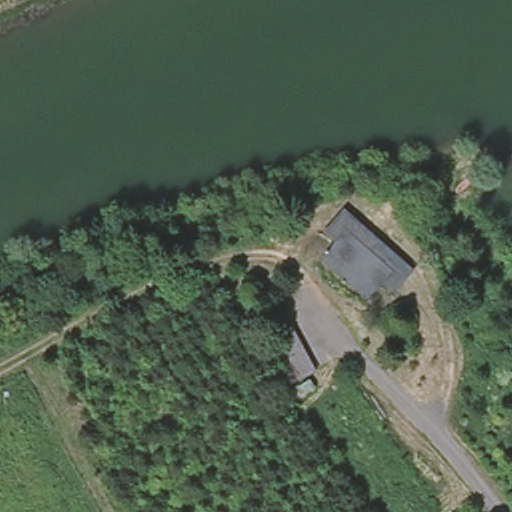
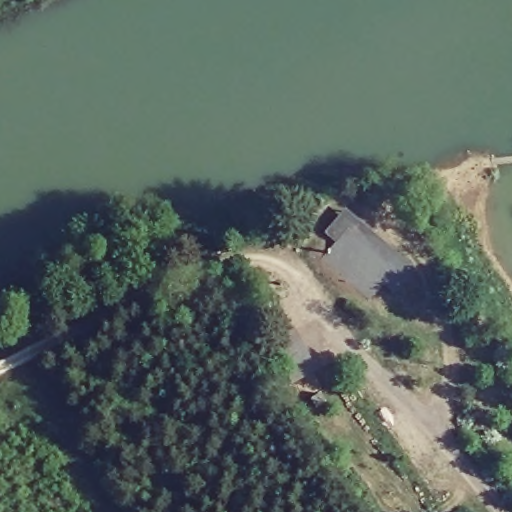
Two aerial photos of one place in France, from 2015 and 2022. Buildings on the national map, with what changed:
unchanged [(324,233),(344,210),(415,271),(394,294),(380,285),(364,302),(356,296),(382,265),(343,231),(334,243),(324,233)]
unchanged [(334,243),(343,231),(382,265),(356,296),(319,263),(334,243)]
unchanged [(312,370),(291,381),(269,335),(288,326),(312,370)]

